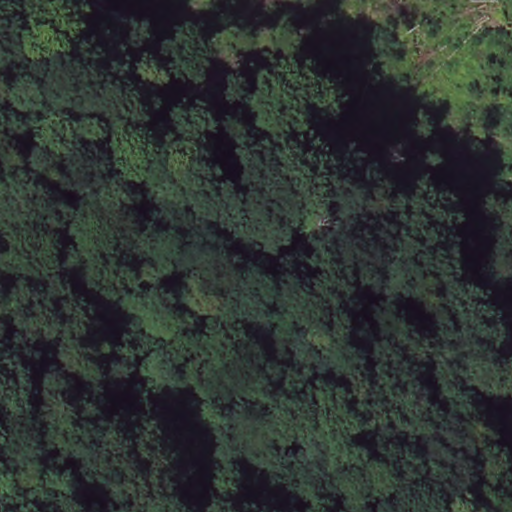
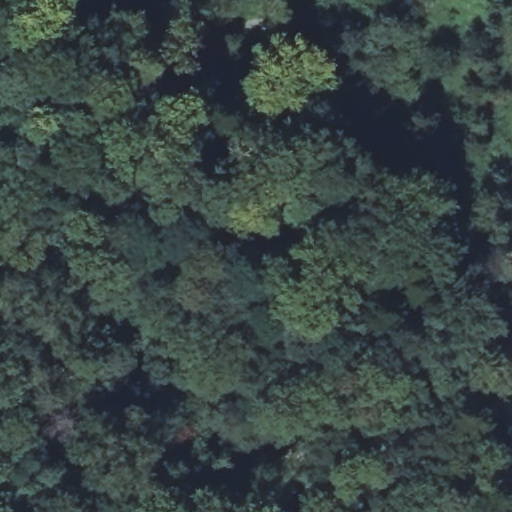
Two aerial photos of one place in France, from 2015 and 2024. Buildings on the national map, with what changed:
[]

